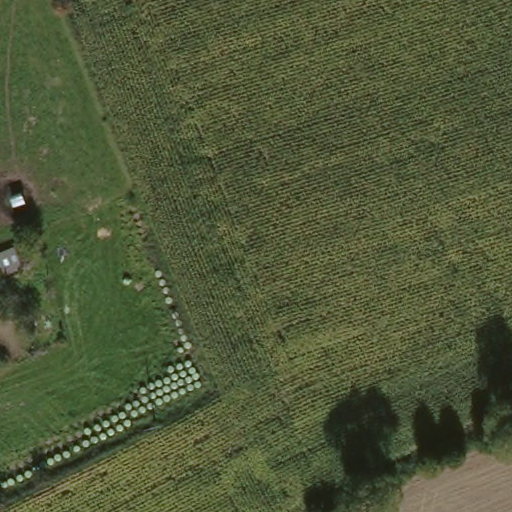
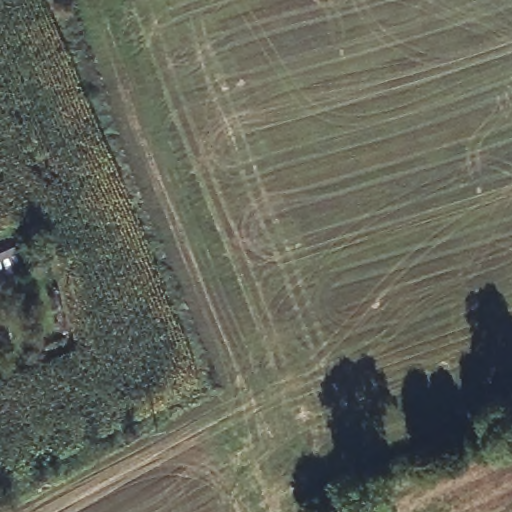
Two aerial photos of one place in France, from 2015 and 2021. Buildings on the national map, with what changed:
unchanged [(11,248),(20,267),(0,276),(0,253),(11,248)]

